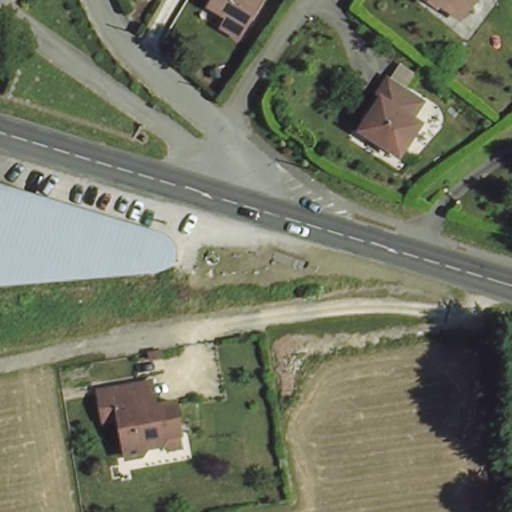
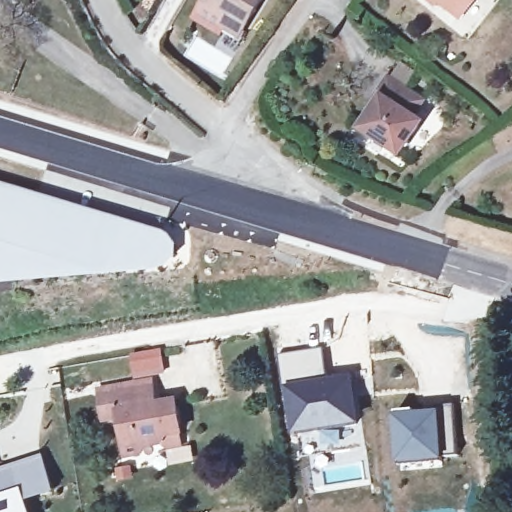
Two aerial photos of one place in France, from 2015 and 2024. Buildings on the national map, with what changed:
unchanged [(218,22),(224,11),(206,0),(252,0),(240,20),(233,31),(218,22)]
unchanged [(456,19),(432,0),(427,7),(419,0),(472,0),(456,19)]
unchanged [(380,99),(392,80),(422,97),(412,115),(423,122),(403,154),(370,132),(386,101),(380,99)]
unchanged [(163,227),(167,230),(172,239),(170,248),(159,255),(150,258),(0,267),(0,184),(163,227)]
new [(294,432),(286,387),(279,356),(323,348),(328,378),(353,375),(361,421),(294,432)]
unchanged [(147,360),(156,358),(157,365),(146,366),(145,360),(147,360)]
unchanged [(169,448),(161,444),(147,446),(141,453),(127,455),(121,416),(105,418),(100,390),(138,383),(152,381),(155,397),(156,405),(175,401),(181,433),(183,445),(169,448)]
new [(442,456),(442,460),(399,464),(394,411),(438,406),(451,405),(456,454),(442,456)]
new [(26,501),(30,512),(0,512),(0,469),(42,456),(54,492),(26,501)]

